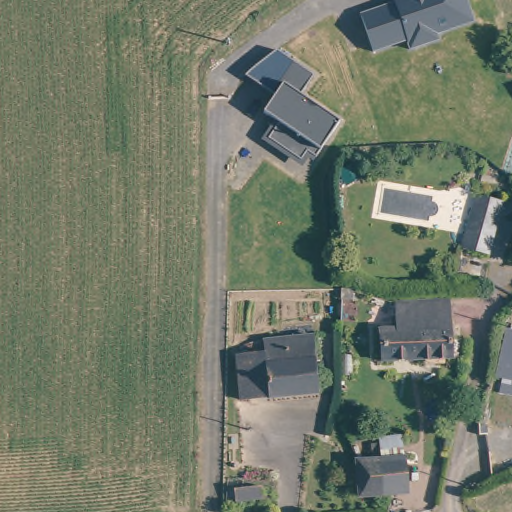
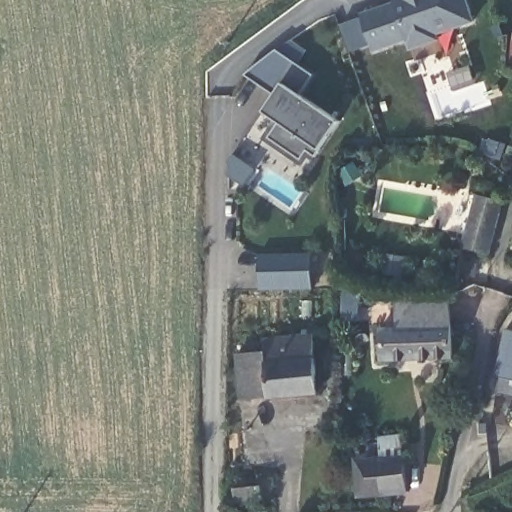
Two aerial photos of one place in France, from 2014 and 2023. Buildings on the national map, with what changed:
unchanged [(437,36),(440,42),(410,52),(407,42),(374,53),(361,16),(396,4),(395,0),(468,0),(475,23),(437,36)]
unchanged [(506,62),(512,38),(512,63),(506,62)]
unchanged [(321,149),(312,160),(307,157),(301,167),(264,139),(278,121),(265,112),(277,95),(247,76),(279,51),(315,76),(303,98),(339,123),(321,149)]
unchanged [(488,253),(462,247),(475,194),(501,200),(488,253)]
new [(312,254),(312,289),(260,289),(259,254),(312,254)]
unchanged [(455,358),(375,364),(375,327),(397,327),(395,298),(449,299),(455,358)]
unchanged [(500,389),(502,380),(496,378),(505,329),(512,330),(512,391),(500,389)]
unchanged [(313,336),(319,393),(268,397),(264,341),(313,336)]
unchanged [(236,343),(264,341),(268,397),(242,399),(236,343)]
unchanged [(357,460),(382,458),(386,458),(385,437),(405,437),(406,457),(408,492),(386,494),(360,496),(357,460)]
unchanged [(236,488),(262,487),(262,498),(235,499),(236,488)]

